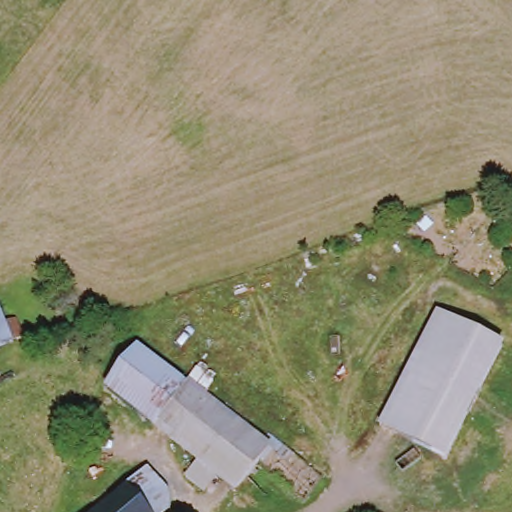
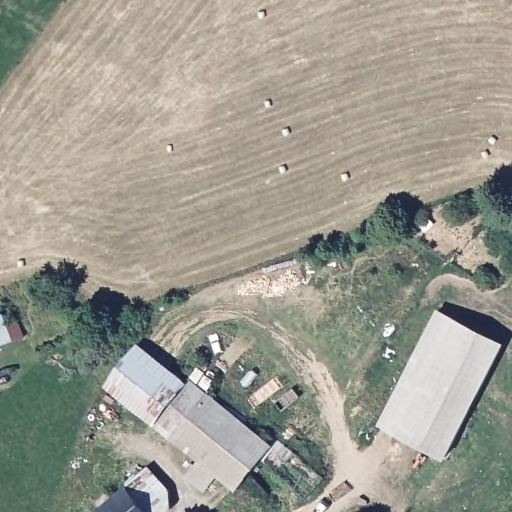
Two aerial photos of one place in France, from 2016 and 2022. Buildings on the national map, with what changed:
unchanged [(17,322),(25,341),(0,350),(0,309),(7,327),(17,322)]
unchanged [(438,310),(505,342),(450,456),(383,423),(438,310)]
unchanged [(105,389),(138,347),(187,384),(153,427),(105,389)]
unchanged [(272,448),(239,494),(220,478),(206,497),(190,481),(202,464),(153,427),(187,384),(272,448)]
unchanged [(153,512),(127,484),(146,467),(167,488),(171,510),(168,512),(153,512)]
unchanged [(153,512),(95,512),(127,484),(153,512)]

